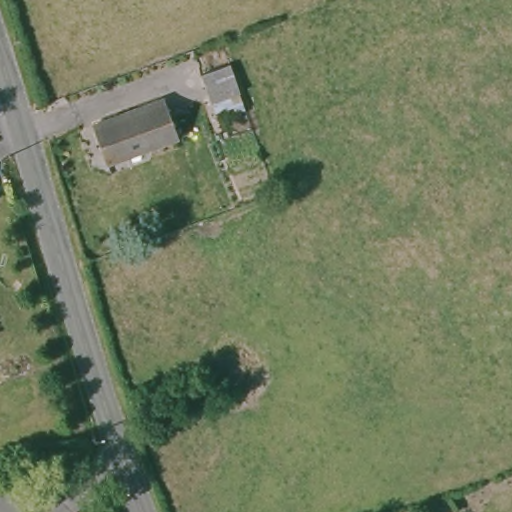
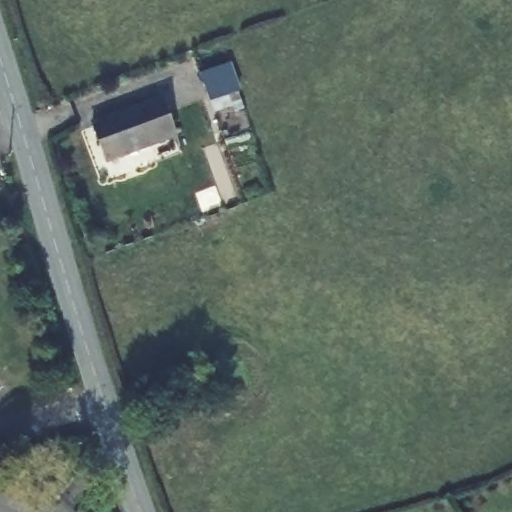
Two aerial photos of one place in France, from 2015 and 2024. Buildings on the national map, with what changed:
unchanged [(254,82),(225,92),(215,63),(244,53),(254,82)]
unchanged [(176,136),(107,162),(93,125),(163,99),(176,136)]

